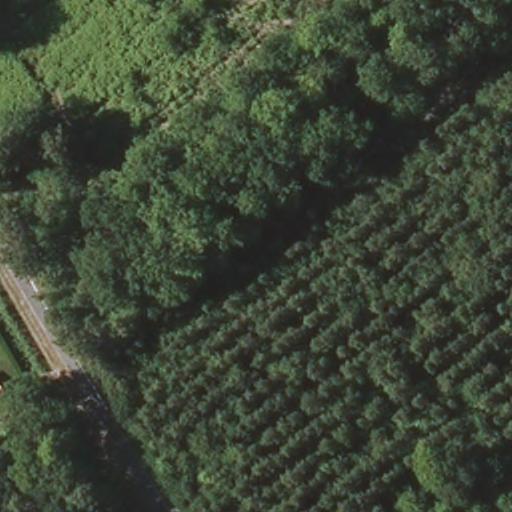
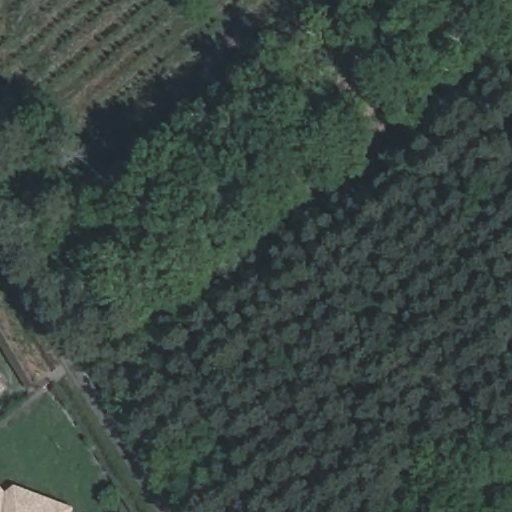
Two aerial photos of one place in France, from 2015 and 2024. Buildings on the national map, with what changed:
demolished [(27,410),(17,418),(6,405),(17,396),(27,410)]
new [(0,512),(0,482),(9,492),(17,486),(78,508),(77,512),(0,512)]

